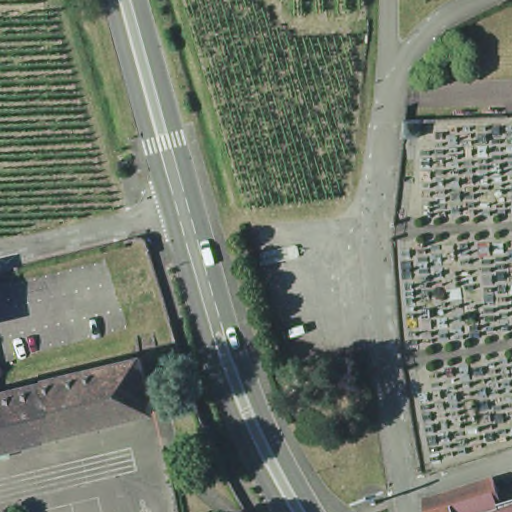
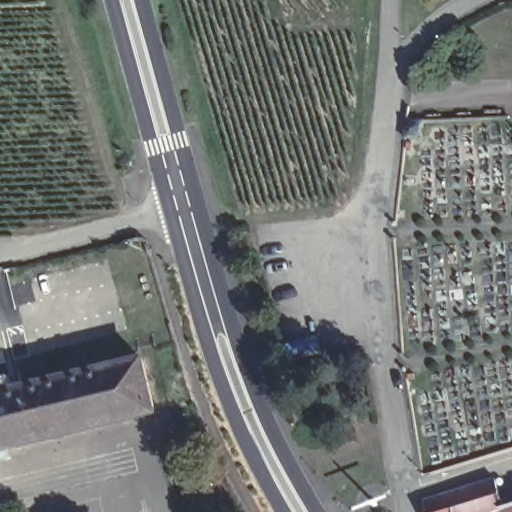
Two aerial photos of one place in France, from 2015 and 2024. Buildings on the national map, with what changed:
unchanged [(407,119),(423,119),(423,137),(405,137),(407,119)]
unchanged [(146,354),(158,407),(0,445),(0,389),(146,354)]
unchanged [(430,508),(430,507),(429,501),(499,477),(503,486),(509,503),(512,512),(431,512),(430,508)]

